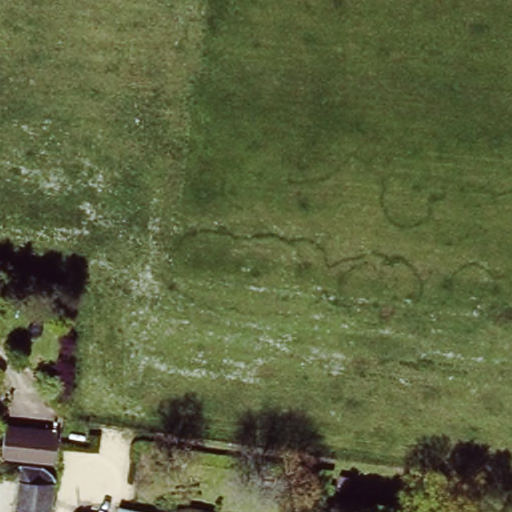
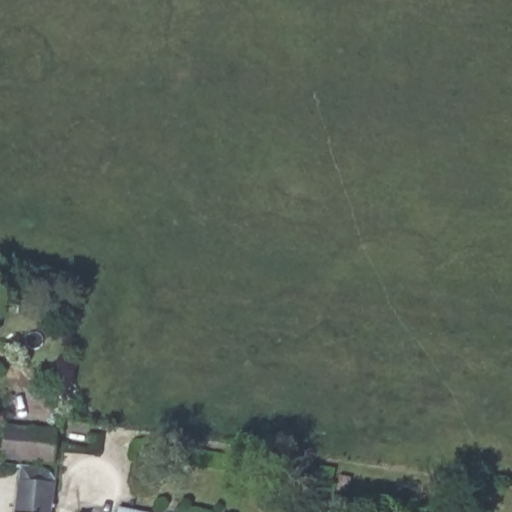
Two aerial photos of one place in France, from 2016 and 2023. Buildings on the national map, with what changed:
unchanged [(62,429),(58,463),(55,463),(5,456),(8,422),(62,429)]
unchanged [(25,463),(55,468),(55,463),(58,463),(64,464),(58,502),(57,512),(17,512),(25,463)]
unchanged [(132,511),(140,512),(131,512),(132,511)]

